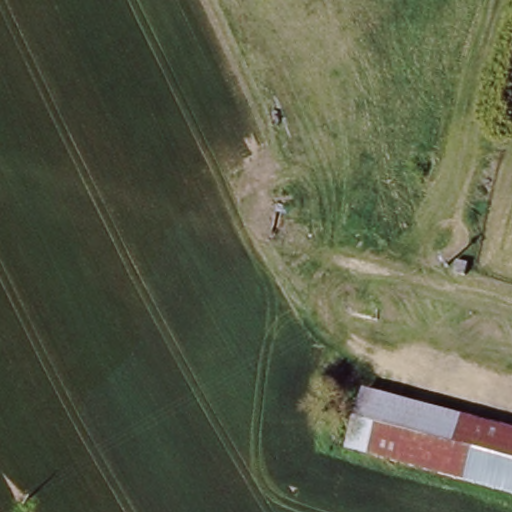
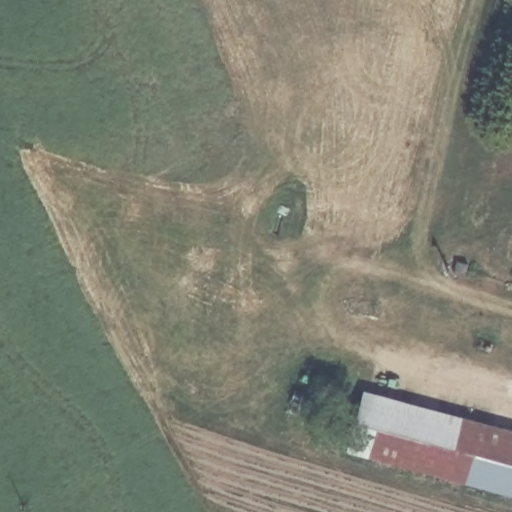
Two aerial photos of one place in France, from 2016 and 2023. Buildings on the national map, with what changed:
unchanged [(368,386),(512,434),(512,497),(350,442),(368,386)]

